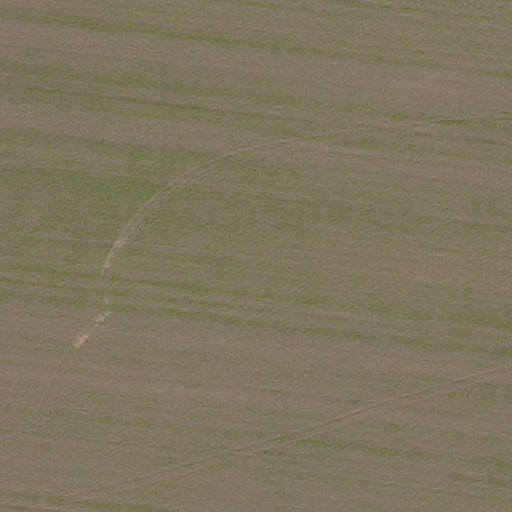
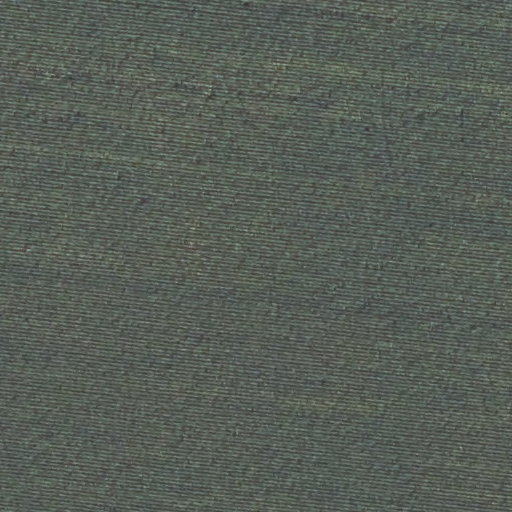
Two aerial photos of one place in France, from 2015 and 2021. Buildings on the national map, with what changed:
[]

